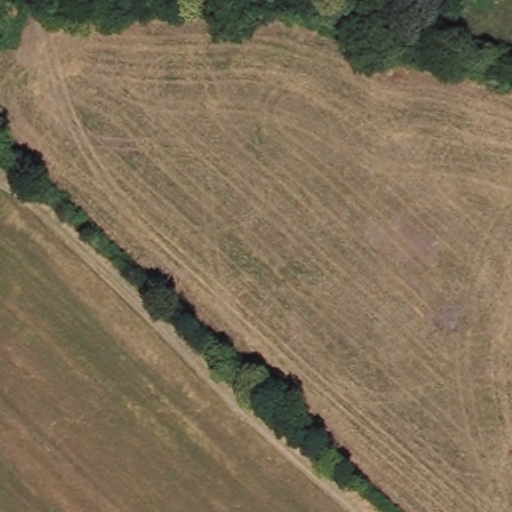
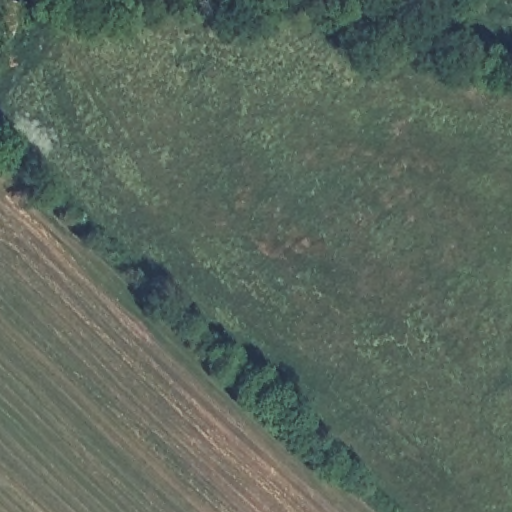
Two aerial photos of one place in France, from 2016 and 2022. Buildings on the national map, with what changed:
unchanged [(2,0),(9,0),(25,6),(12,40),(11,39),(0,35),(0,4),(2,0)]

